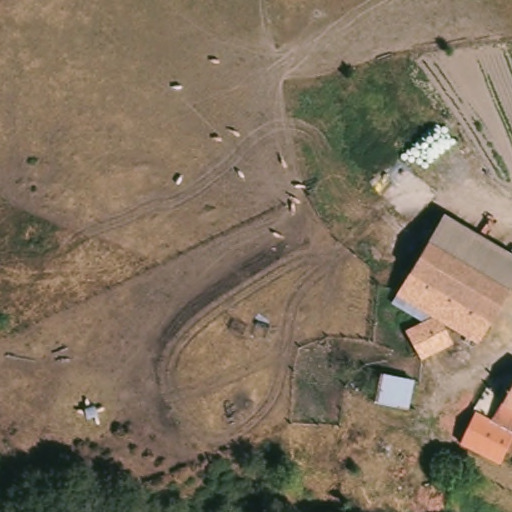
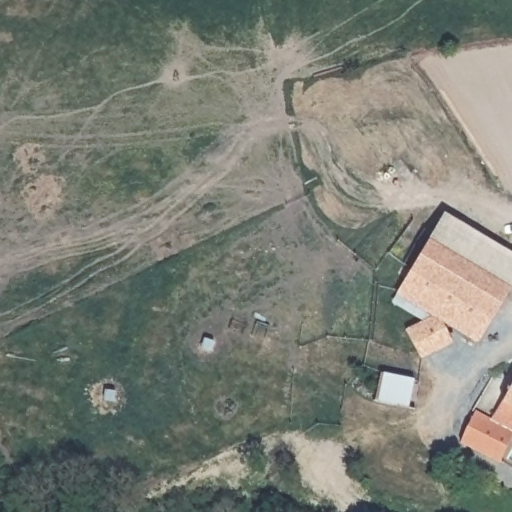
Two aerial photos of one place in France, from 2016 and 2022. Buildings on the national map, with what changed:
unchanged [(492,322),(462,365),(437,351),(420,357),(408,330),(422,323),(391,303),(408,272),(427,239),(440,216),(512,258),(512,286),(510,289),(492,322)]
unchanged [(481,393),(498,403),(512,379),(512,449),(511,451),(502,448),(500,456),(489,452),(458,435),(481,393)]

